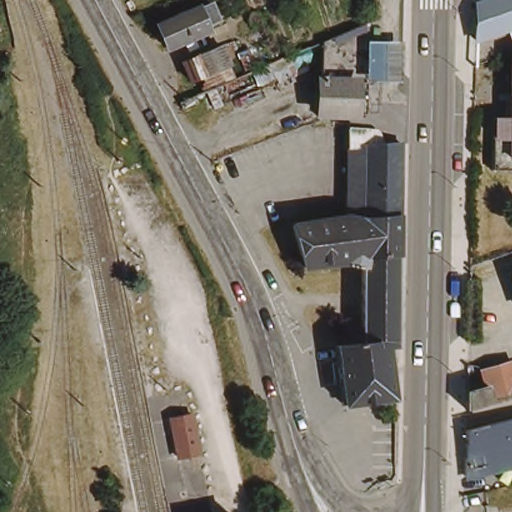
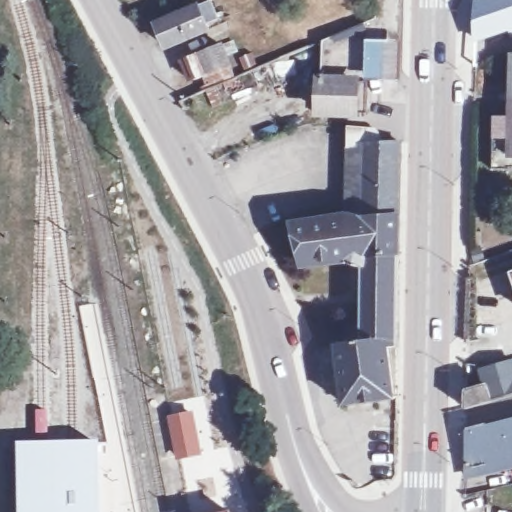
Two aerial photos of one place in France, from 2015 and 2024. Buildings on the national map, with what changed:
unchanged [(479,9),(502,0),(512,0),(512,33),(478,45),(479,9)]
unchanged [(210,2),(220,24),(167,46),(155,24),(210,2)]
unchanged [(207,66),(189,73),(182,57),(222,40),(229,57),(235,71),(215,79),(207,66)]
unchanged [(366,42),(402,42),(402,80),(365,79),(366,42)]
unchanged [(353,71),(352,102),(319,101),(320,70),(353,71)]
unchanged [(196,92),(201,102),(185,111),(178,99),(196,92)]
unchanged [(505,122),(505,104),(497,104),(496,94),(512,94),(512,174),(495,175),(492,122),(505,122)]
unchanged [(373,243),(362,244),(362,256),(347,256),(347,250),(303,254),(292,213),(347,205),(347,134),(347,117),(371,117),(377,121),(377,132),(399,132),(397,242),(373,243)]
unchanged [(375,414),(350,417),(345,405),(334,333),(360,329),(362,256),(362,244),(373,243),(397,242),(394,412),(375,414)]
unchanged [(487,391),(483,377),(512,367),(512,403),(467,416),(467,397),(487,391)]
unchanged [(170,418),(191,414),(199,451),(178,455),(170,418)]
unchanged [(471,428),(512,416),(512,462),(470,473),(471,428)]
new [(96,512),(16,512),(15,445),(93,445),(96,512)]
unchanged [(238,512),(217,512),(237,508),(238,512)]

